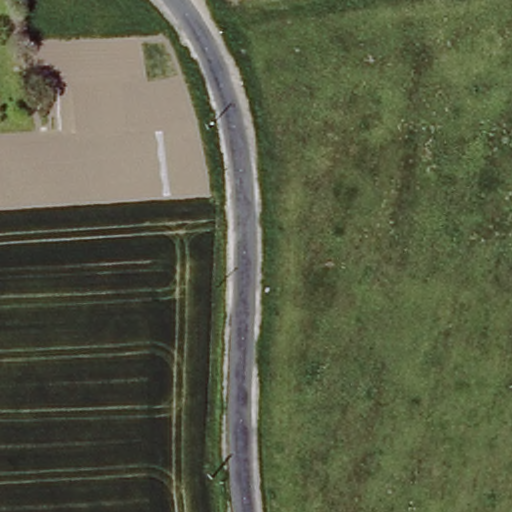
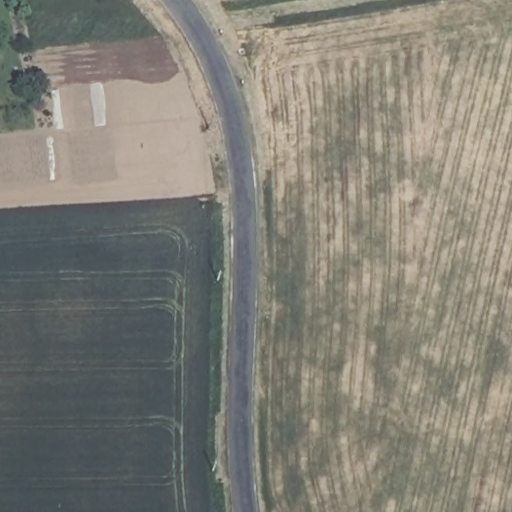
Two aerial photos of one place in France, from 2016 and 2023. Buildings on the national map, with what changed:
[]

